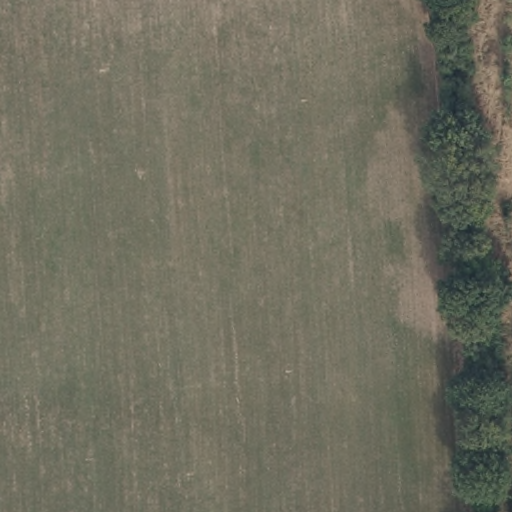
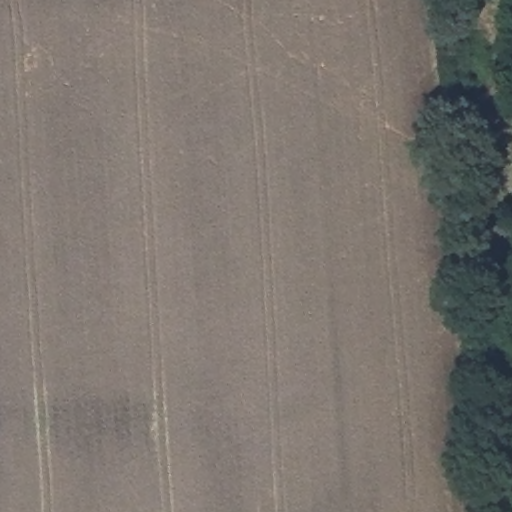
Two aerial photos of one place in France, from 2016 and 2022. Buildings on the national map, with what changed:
[]

